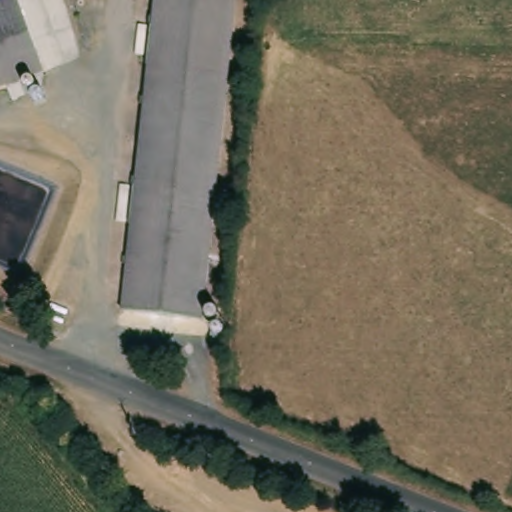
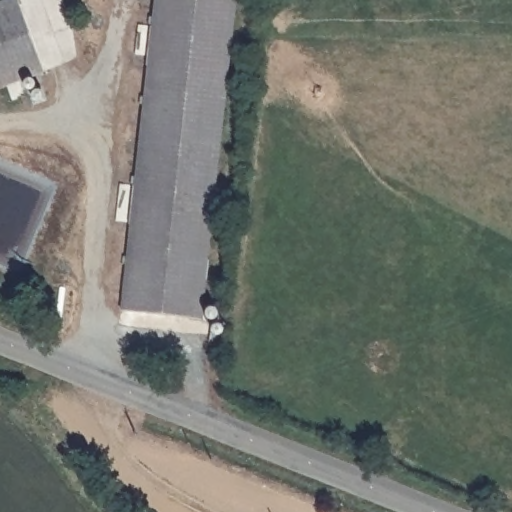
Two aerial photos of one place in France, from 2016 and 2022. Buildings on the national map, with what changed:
unchanged [(43,65),(0,81),(0,0),(20,0),(43,65)]
unchanged [(204,314),(133,308),(163,0),(235,0),(204,314)]

